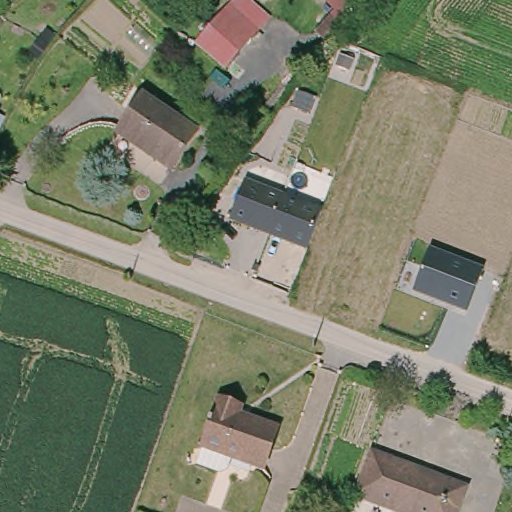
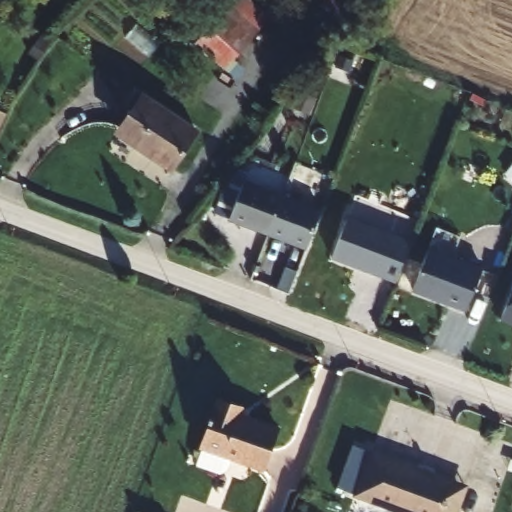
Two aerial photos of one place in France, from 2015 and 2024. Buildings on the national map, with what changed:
unchanged [(195,49),(236,0),(241,0),(272,26),(221,75),(195,49)]
unchanged [(194,141),(166,173),(116,133),(144,99),(194,141)]
unchanged [(321,208),(307,251),(229,221),(246,179),(321,208)]
new [(348,216),(411,241),(395,283),(331,257),(348,216)]
unchanged [(484,268),(467,313),(412,291),(429,247),(484,268)]
new [(512,289),(512,325),(500,320),(512,289)]
unchanged [(224,461),(219,472),(213,475),(201,470),(201,473),(189,468),(218,402),(249,414),(246,424),(279,438),(261,476),(224,461)]
new [(369,445),(349,492),(336,486),(356,440),(369,445)]
unchanged [(376,450),(467,485),(456,512),(400,512),(357,496),(376,450)]

